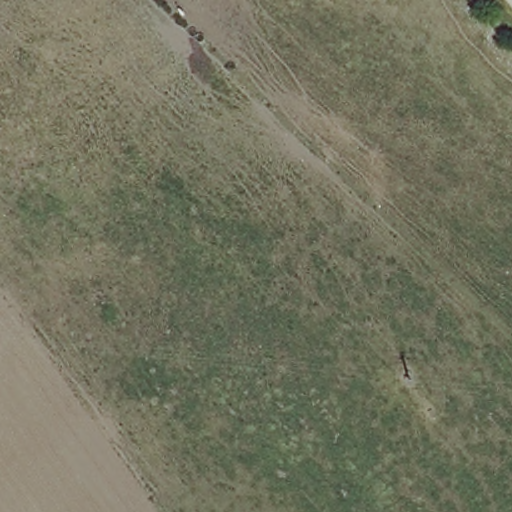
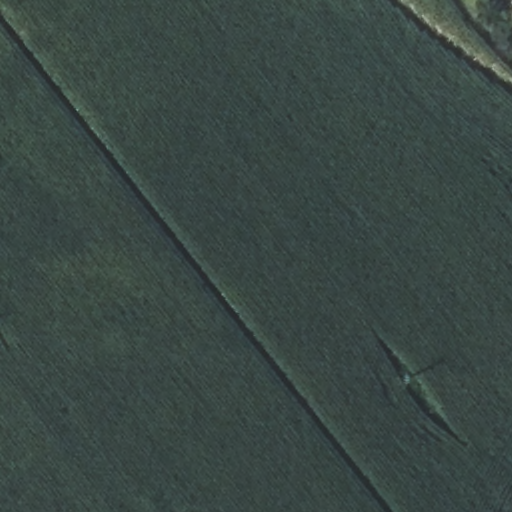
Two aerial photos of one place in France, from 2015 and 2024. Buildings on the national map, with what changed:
[]

